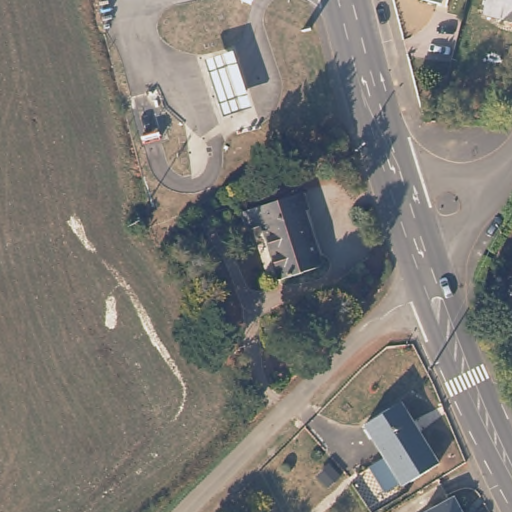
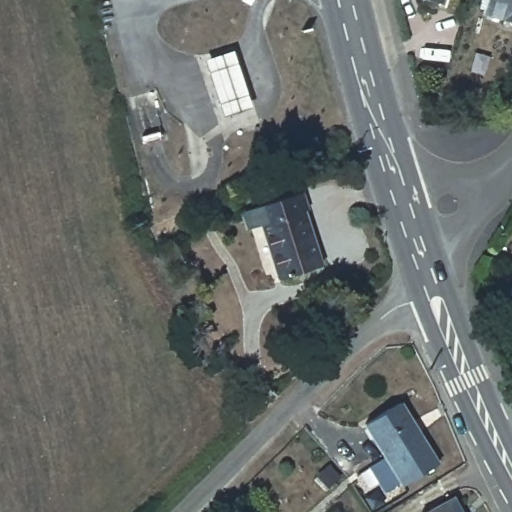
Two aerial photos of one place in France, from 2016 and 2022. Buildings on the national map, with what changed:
unchanged [(432,0),(446,0),(446,4),(432,0)]
unchanged [(481,11),(484,0),(512,0),(512,18),(481,11)]
unchanged [(258,118),(230,126),(205,50),(231,41),(258,118)]
unchanged [(307,207),(302,209),(318,260),(276,275),(259,220),(248,224),(243,208),(301,190),(307,207)]
unchanged [(509,289),(512,283),(512,290),(509,289)]
unchanged [(437,463),(400,483),(363,421),(400,398),(437,463)]
unchanged [(462,512),(417,512),(414,506),(448,487),(462,512)]

